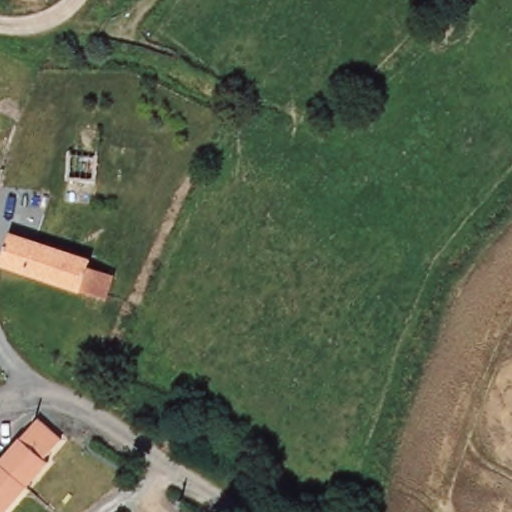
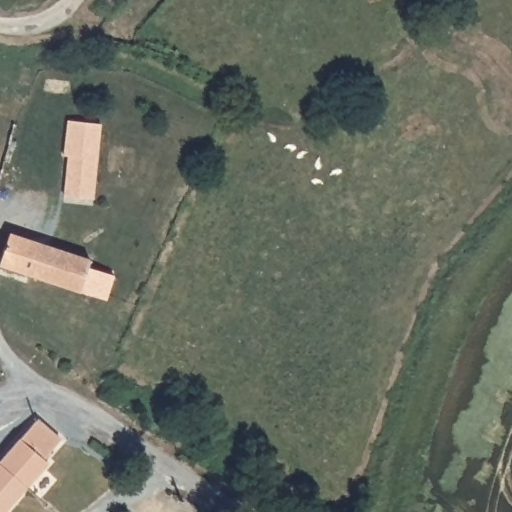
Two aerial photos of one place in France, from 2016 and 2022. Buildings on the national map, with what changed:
new [(94,199),(63,197),(67,156),(63,156),(67,120),(102,124),(94,199)]
demolished [(69,150),(100,151),(95,197),(64,194),(69,150)]
unchanged [(75,292),(70,290),(6,267),(0,265),(0,264),(11,232),(83,260),(83,265),(116,277),(107,303),(75,292)]
unchanged [(0,467),(41,421),(66,441),(25,492),(0,469),(0,467)]
unchanged [(7,512),(0,512),(0,469),(25,492),(7,512)]

